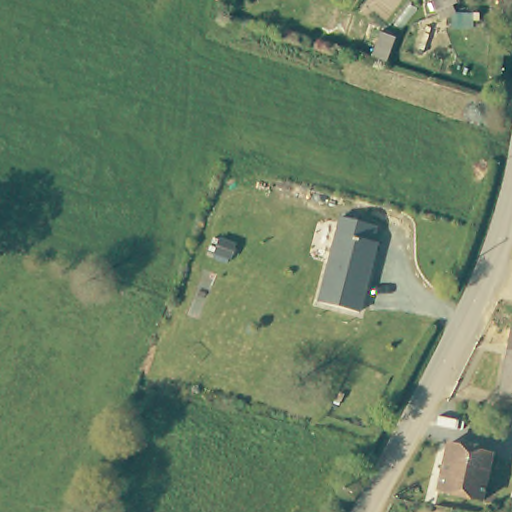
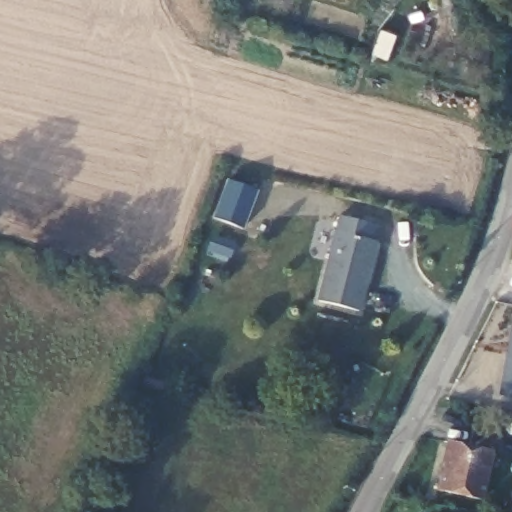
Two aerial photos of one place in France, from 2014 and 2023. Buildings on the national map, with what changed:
unchanged [(460,12),(436,21),(427,0),(456,0),(460,12)]
new [(230,179),(258,191),(243,229),(215,218),(230,179)]
unchanged [(363,308),(322,298),(346,214),(382,222),(378,237),(382,239),(363,308)]
unchanged [(512,339),(512,399),(502,397),(512,339)]
unchanged [(447,442),(490,450),(481,498),(437,490),(447,442)]

